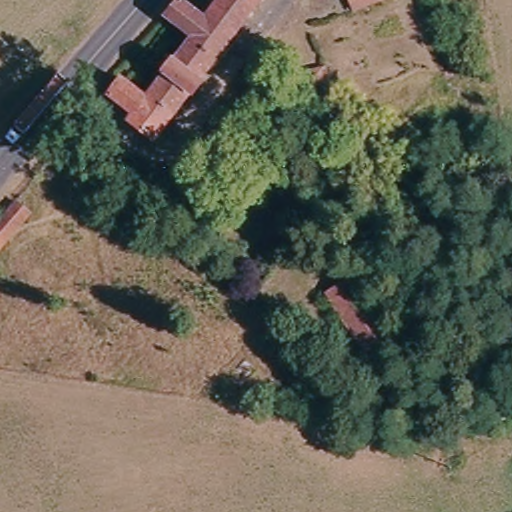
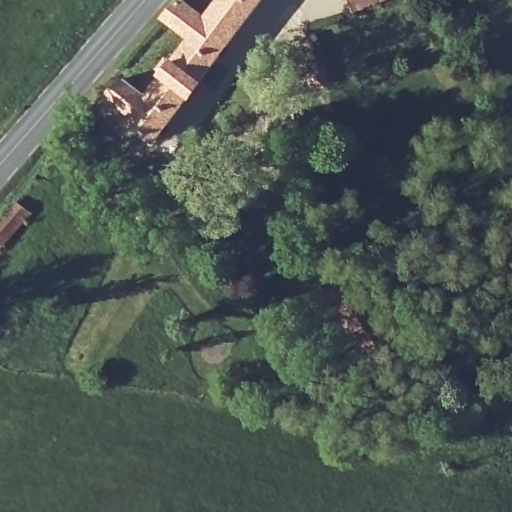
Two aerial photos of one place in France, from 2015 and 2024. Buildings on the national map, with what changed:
unchanged [(122,124),(127,116),(105,102),(118,86),(139,102),(155,80),(154,74),(161,66),(166,67),(186,42),(164,24),(178,7),(199,24),(216,0),(261,0),(150,145),(122,124)]
unchanged [(343,0),(372,0),(346,10),(343,0)]
unchanged [(31,217),(0,248),(0,215),(11,201),(31,217)]
unchanged [(367,362),(325,297),(348,281),(391,347),(367,362)]

